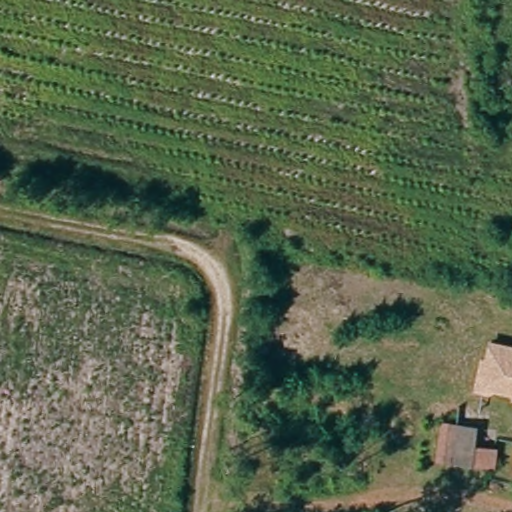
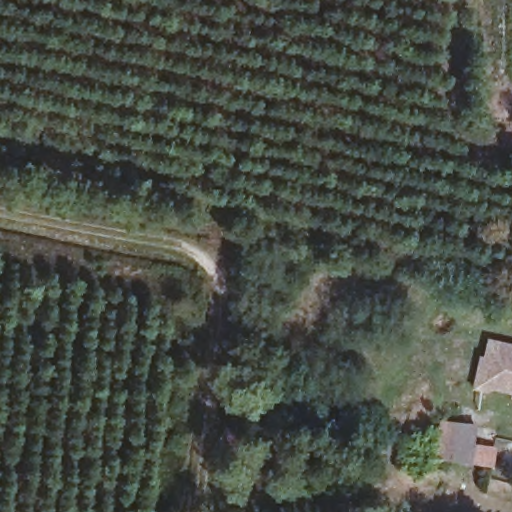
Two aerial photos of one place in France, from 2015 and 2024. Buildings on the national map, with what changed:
unchanged [(494,388),(490,391),(477,389),(483,360),(487,360),(490,342),(512,347),(512,392),(494,388)]
unchanged [(494,465),(474,462),(452,458),(458,424),(480,428),(477,446),(497,449),(494,465)]

